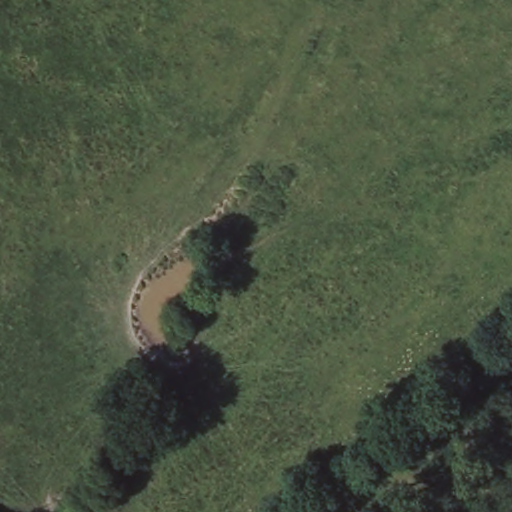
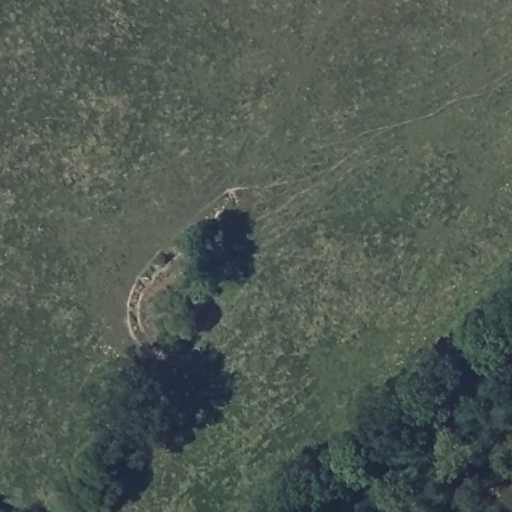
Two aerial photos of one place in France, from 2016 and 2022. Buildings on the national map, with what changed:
[]

